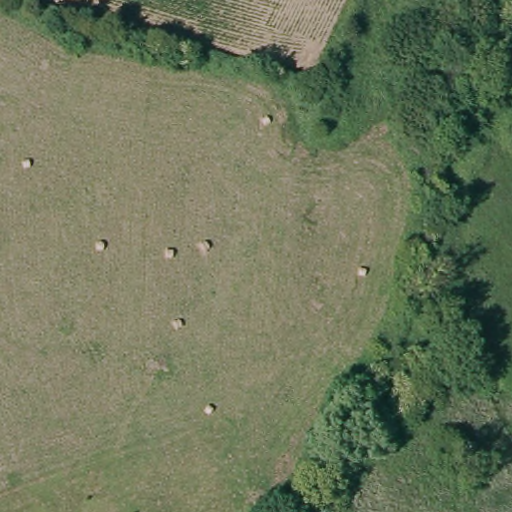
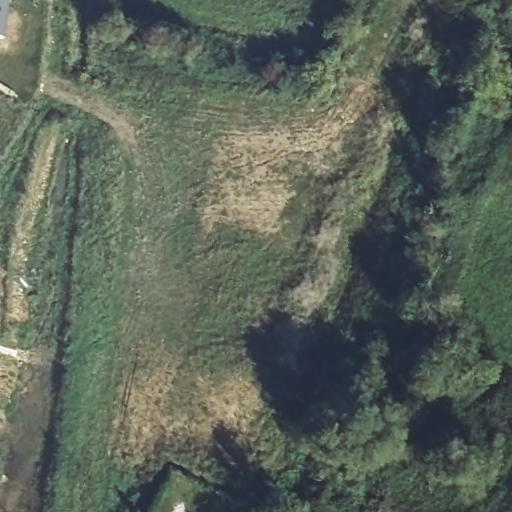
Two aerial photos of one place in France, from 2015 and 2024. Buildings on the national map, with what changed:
new [(0,0),(10,0),(5,39),(0,38),(0,0)]

